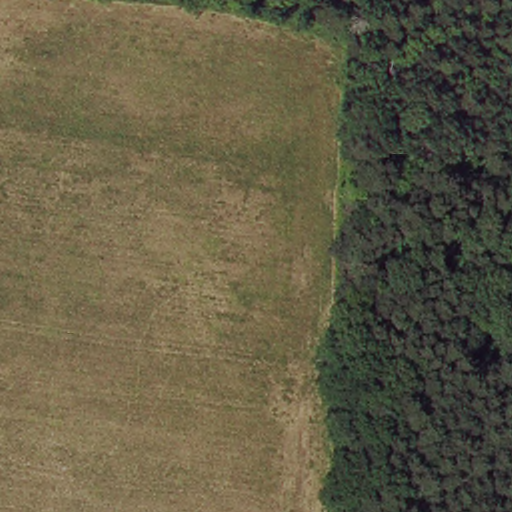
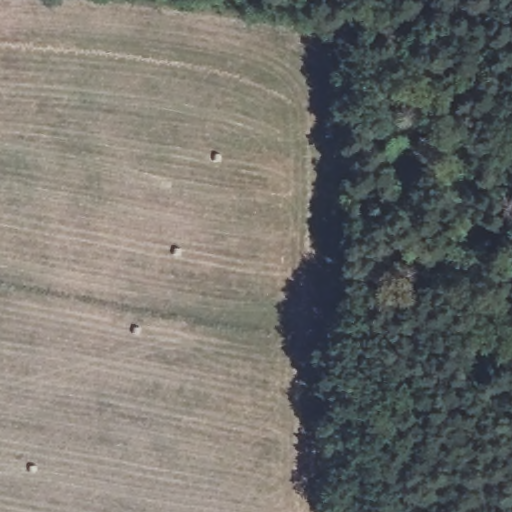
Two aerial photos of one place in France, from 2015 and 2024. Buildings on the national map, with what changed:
[]

